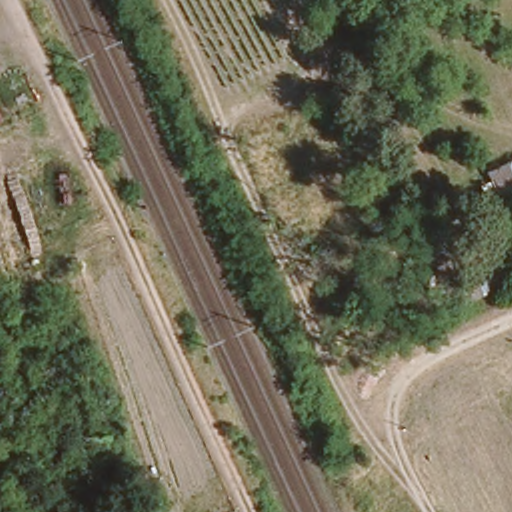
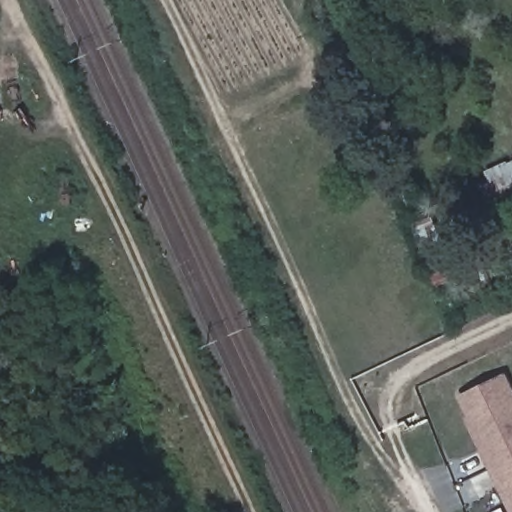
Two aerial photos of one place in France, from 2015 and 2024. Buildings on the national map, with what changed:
unchanged [(478,171),(512,158),(512,179),(484,190),(478,171)]
unchanged [(461,277),(444,284),(424,241),(443,233),(461,277)]
new [(512,383),(512,512),(510,512),(463,419),(467,417),(457,396),(506,372),(512,383)]

